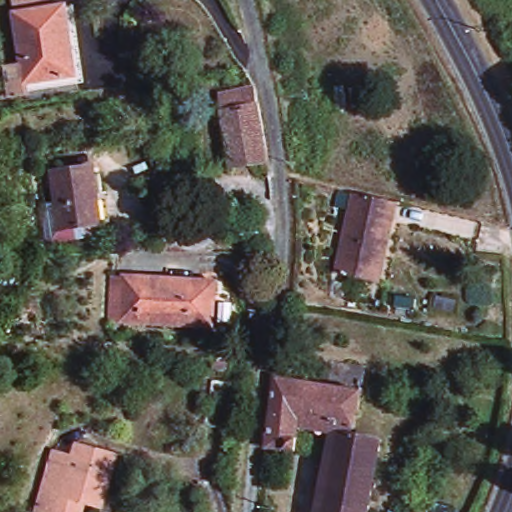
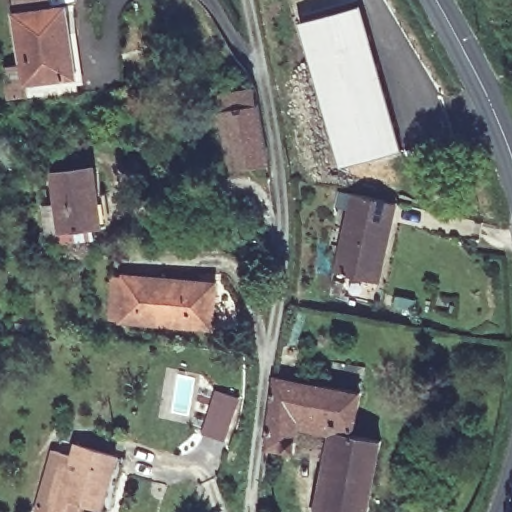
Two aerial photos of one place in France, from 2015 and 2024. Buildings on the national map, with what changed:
unchanged [(15,10),(66,2),(78,88),(26,95),(15,10)]
new [(363,2),(403,150),(339,167),(299,20),(363,2)]
unchanged [(216,105),(253,99),(256,115),(263,148),(269,175),(229,180),(219,120),(216,105)]
unchanged [(101,226),(61,231),(53,179),(52,174),(93,167),(95,176),(101,226)]
unchanged [(377,282),(338,273),(356,192),(400,202),(389,252),(382,283),(377,282)]
unchanged [(214,282),(211,327),(118,321),(121,277),(214,282)]
unchanged [(348,284),(345,298),(334,295),(337,281),(348,284)]
unchanged [(422,307),(402,307),(402,297),(422,297),(422,307)]
unchanged [(351,436),(380,442),(366,512),(318,512),(333,436),(297,430),(294,451),(264,447),(274,377),(359,393),(351,436)]
unchanged [(71,461),(75,450),(116,462),(101,512),(97,512),(86,509),(85,512),(37,512),(53,455),(71,461)]

